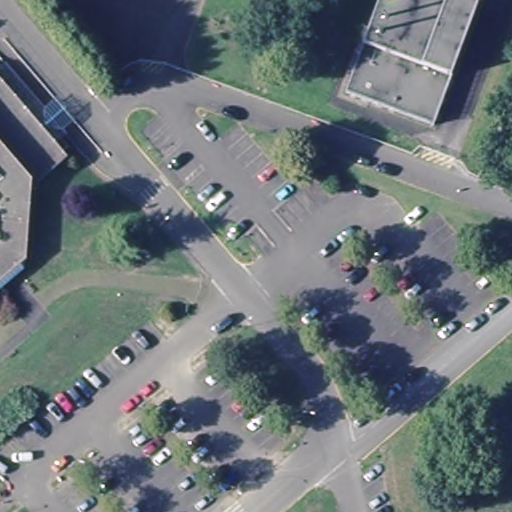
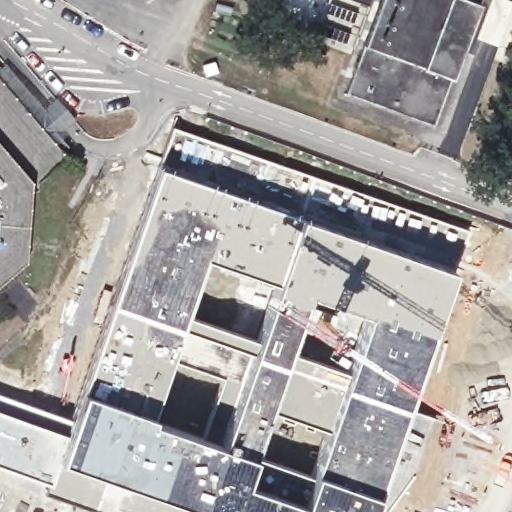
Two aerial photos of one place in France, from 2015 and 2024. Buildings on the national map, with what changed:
unchanged [(435,128),(346,95),(382,0),(466,0),(481,5),(435,128)]
unchanged [(7,73),(1,79),(29,111),(46,131),(52,127),(53,129),(65,142),(66,152),(64,154),(35,177),(36,185),(29,186),(23,258),(0,277),(0,66),(7,73)]
unchanged [(40,102),(41,103),(47,98),(52,94),(68,112),(63,117),(52,127),(46,131),(29,111),(1,79),(7,73),(12,69),(40,102)]
new [(300,214),(160,164),(173,126),(469,230),(455,270),(300,214)]
new [(59,458),(68,434),(72,420),(81,390),(160,164),(300,214),(455,270),(406,406),(376,493),(370,508),(369,512),(212,512),(59,458)]
new [(0,410),(0,395),(72,420),(68,434),(0,410)]
new [(384,512),(379,512),(370,508),(376,493),(406,406),(434,417),(413,474),(384,512)]
new [(0,466),(0,410),(68,434),(59,458),(50,483),(0,466)]
new [(212,512),(98,512),(45,494),(50,483),(59,458),(212,512)]

